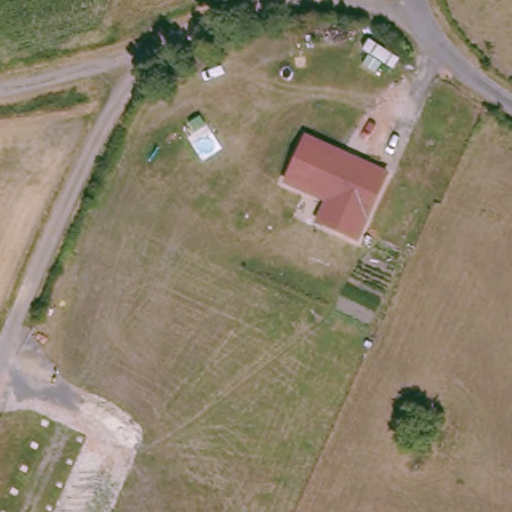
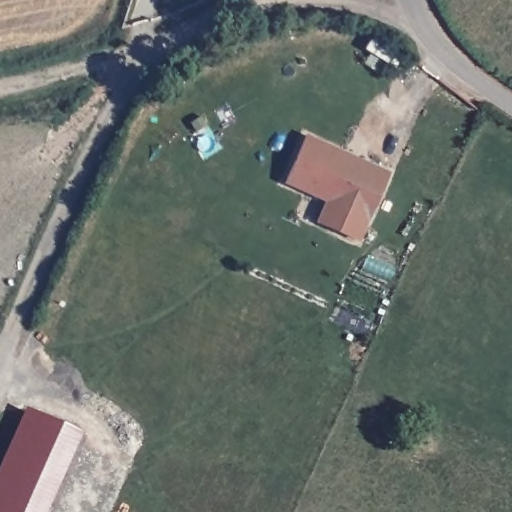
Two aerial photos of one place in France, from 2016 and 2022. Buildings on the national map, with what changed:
unchanged [(305,131),(388,169),(357,239),(313,221),(323,198),(282,180),(305,131)]
new [(28,413),(85,436),(51,512),(0,512),(0,475),(28,413)]

